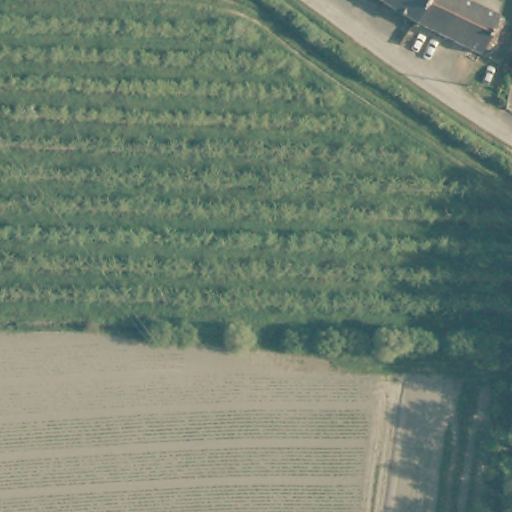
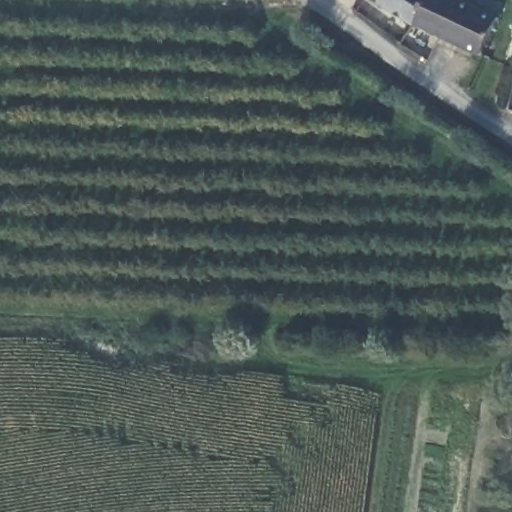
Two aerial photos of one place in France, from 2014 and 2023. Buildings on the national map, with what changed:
unchanged [(424,8),(415,25),(414,24),(377,0),(428,0),(424,8)]
unchanged [(461,0),(499,19),(480,56),(415,25),(424,8),(428,0),(461,0)]

